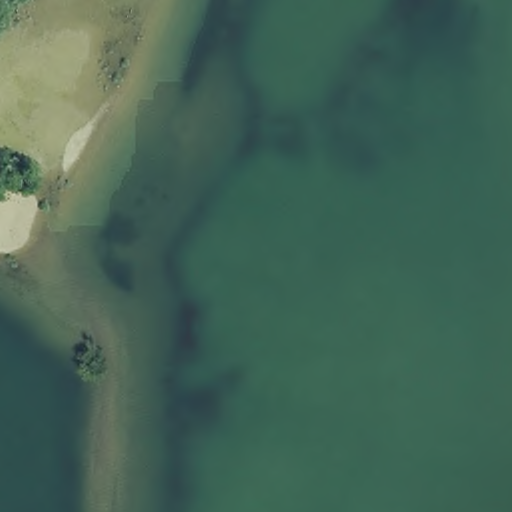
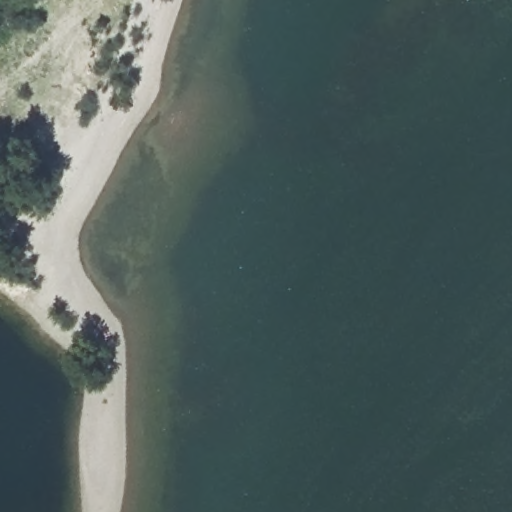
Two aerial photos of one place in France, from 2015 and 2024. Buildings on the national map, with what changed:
[]

